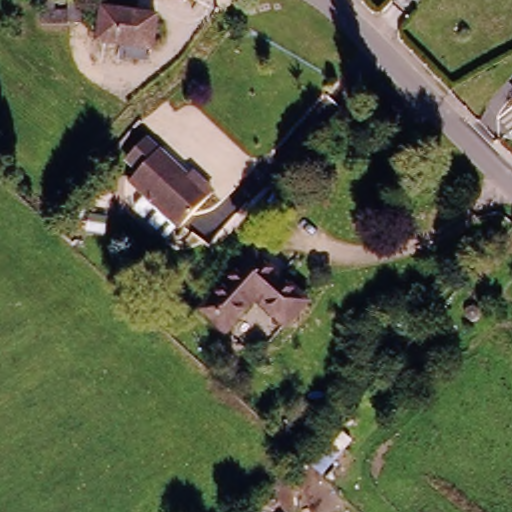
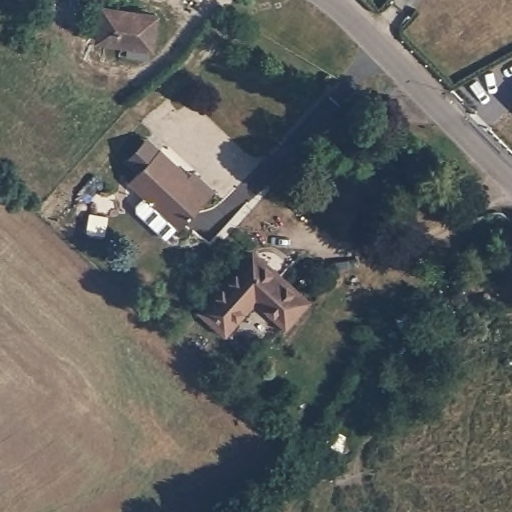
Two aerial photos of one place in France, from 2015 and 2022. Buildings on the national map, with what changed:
unchanged [(86,22),(69,22),(69,24),(45,24),(45,0),(86,0),(86,22)]
unchanged [(101,4),(132,9),(145,10),(155,12),(151,37),(150,45),(131,42),(96,37),(101,4)]
unchanged [(131,177),(139,169),(126,157),(147,135),(159,146),(210,192),(180,222),(131,177)]
unchanged [(286,320),(256,292),(225,326),(202,305),(253,249),(268,262),(278,272),(306,297),(286,320)]

